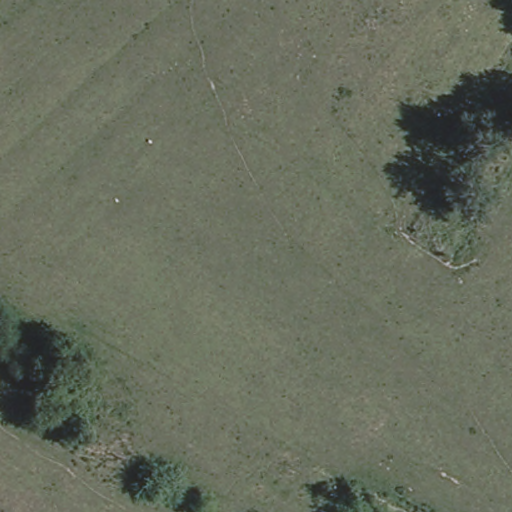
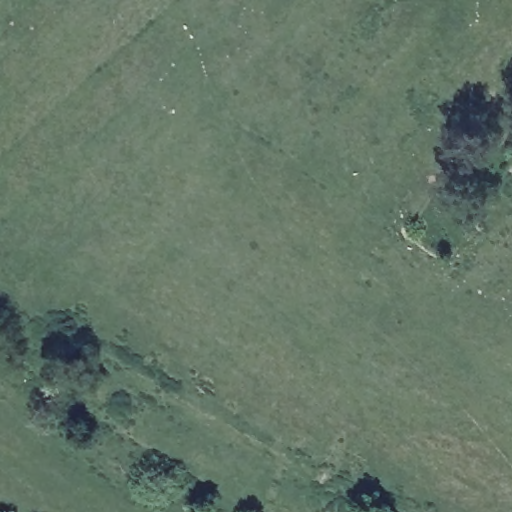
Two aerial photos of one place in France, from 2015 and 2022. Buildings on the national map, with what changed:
[]

